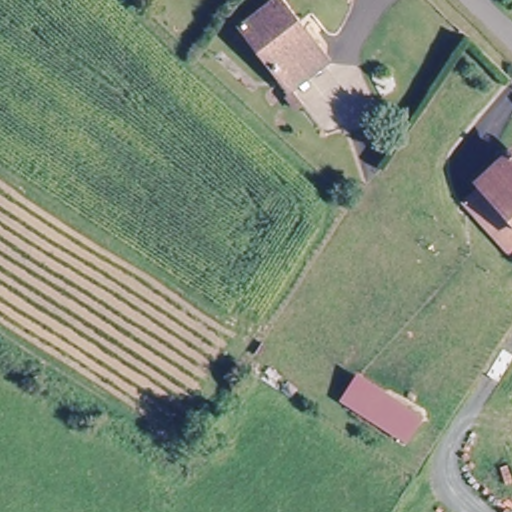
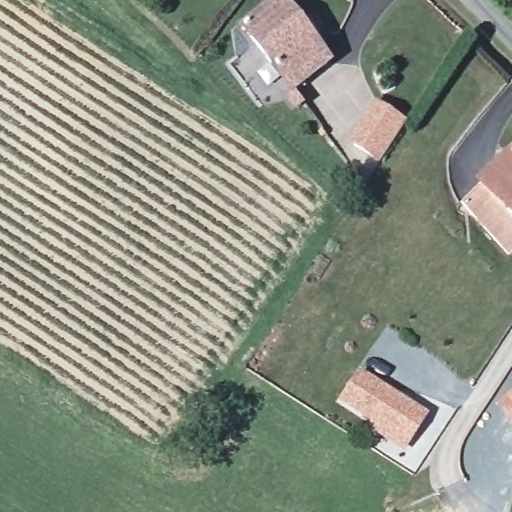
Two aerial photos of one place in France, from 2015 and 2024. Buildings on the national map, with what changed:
unchanged [(287,80),(239,18),(262,0),(278,0),(320,53),(287,80)]
new [(346,142),(372,101),(405,123),(379,164),(346,142)]
unchanged [(512,238),(471,194),(512,160),(512,238)]
unchanged [(399,431),(336,396),(352,373),(412,407),(399,431)]
new [(512,387),(512,424),(494,401),(512,387)]

